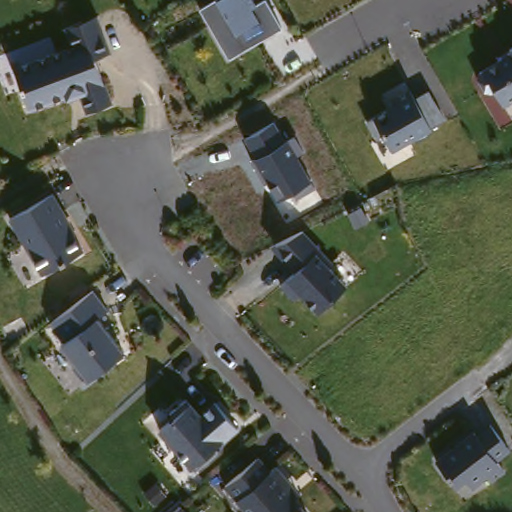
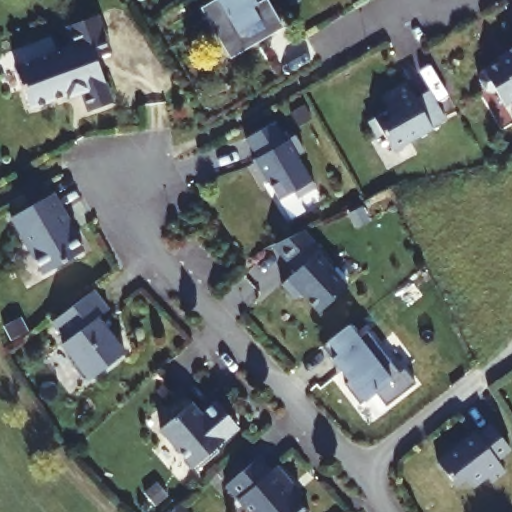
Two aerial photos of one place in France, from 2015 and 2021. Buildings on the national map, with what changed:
unchanged [(213,46),(192,11),(211,0),(245,0),(249,6),(258,0),(265,13),(275,29),(261,38),(258,34),(236,47),(220,57),(213,46)]
unchanged [(101,13),(118,62),(100,67),(111,105),(89,109),(84,94),(30,111),(13,61),(73,46),(67,25),(101,13)]
unchanged [(506,98),(498,83),(494,86),(487,84),(481,73),(483,66),(502,54),(499,50),(512,42),(512,94),(506,98)]
unchanged [(435,126),(436,127),(396,149),(387,133),(381,137),(371,120),(403,103),(399,96),(414,88),(419,97),(433,89),(444,108),(449,118),(435,126)]
unchanged [(255,157),(243,138),(274,121),(287,140),(295,134),(305,151),(299,156),(313,182),(316,187),(297,200),(293,193),(280,200),(255,157)]
unchanged [(74,221),(88,247),(46,269),(16,212),(59,188),(76,220),(74,221)]
unchanged [(299,223),(328,249),(324,255),(351,278),(324,310),(286,274),(292,266),(274,248),(299,223)]
unchanged [(110,302),(99,310),(125,345),(89,372),(82,371),(73,359),(74,352),(62,336),(66,333),(52,314),(65,304),(95,282),(110,302)]
new [(349,325),(359,338),(367,331),(399,373),(404,369),(416,383),(386,406),(375,392),(360,405),(344,385),(349,381),(322,346),(349,325)]
unchanged [(220,444),(223,448),(200,467),(165,425),(175,417),(176,408),(192,395),(205,411),(220,399),(242,426),(220,444)]
unchanged [(489,418),(512,445),(512,447),(501,458),(508,468),(477,487),(467,475),(459,481),(441,454),(489,418)]
unchanged [(266,451),(278,465),(284,461),(299,479),(307,489),(301,493),(316,512),(261,512),(234,477),(266,451)]
unchanged [(201,512),(177,512),(191,500),(201,512)]

